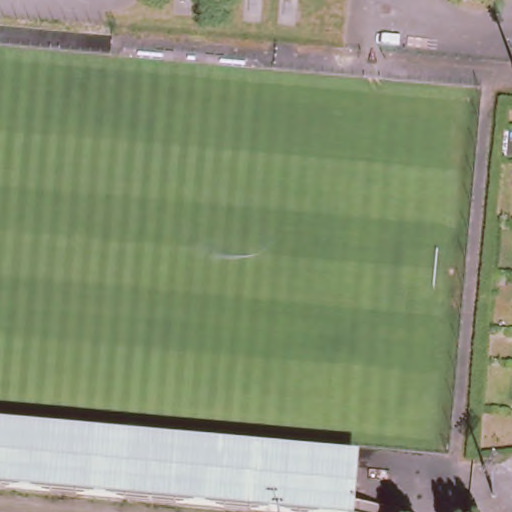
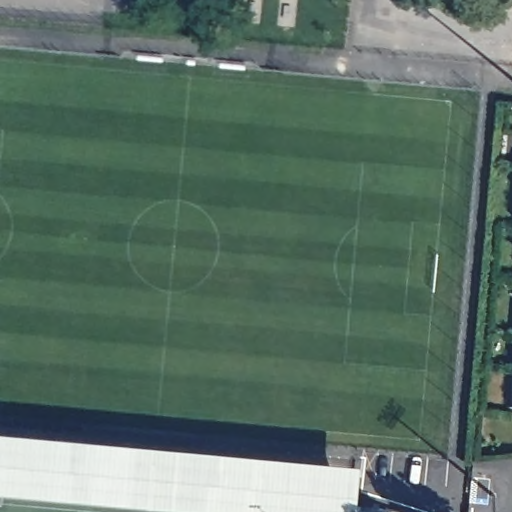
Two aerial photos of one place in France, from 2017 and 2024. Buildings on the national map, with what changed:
unchanged [(0,428),(357,461),(353,505),(381,507),(381,512),(270,512),(0,487),(0,428)]

